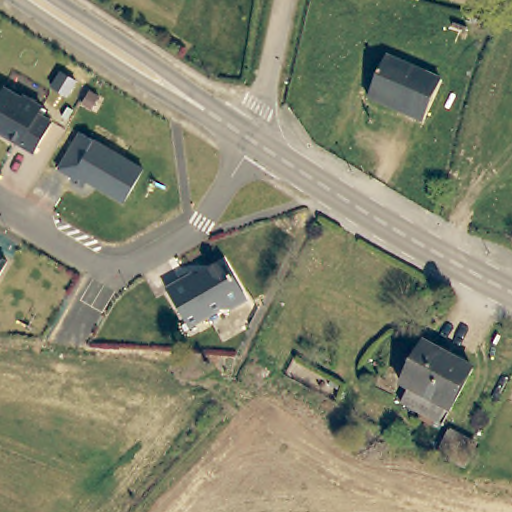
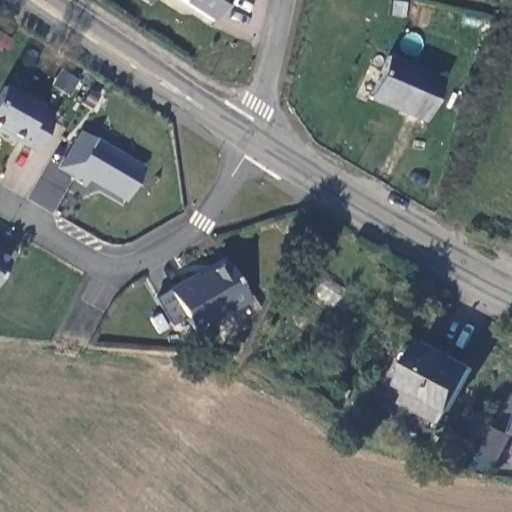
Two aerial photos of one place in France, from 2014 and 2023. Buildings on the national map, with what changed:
new [(184,3),(180,0),(227,0),(213,21),(184,3)]
unchanged [(372,102),(388,60),(444,82),(426,125),(372,102)]
unchanged [(2,136),(3,134),(0,131),(0,90),(1,88),(19,99),(20,96),(39,108),(35,115),(49,123),(32,153),(2,136)]
unchanged [(140,171),(121,203),(84,182),(81,188),(68,181),(70,177),(57,170),(70,148),(78,134),(140,171)]
unchanged [(4,262),(0,269),(0,259),(4,262)]
unchanged [(186,332),(164,293),(192,277),(194,281),(221,265),(244,304),(227,314),(217,315),(186,332)]
unchanged [(472,364),(443,421),(403,401),(410,385),(401,381),(422,339),(472,364)]

